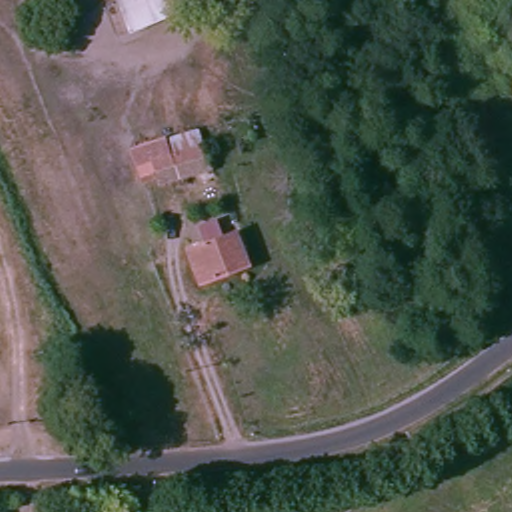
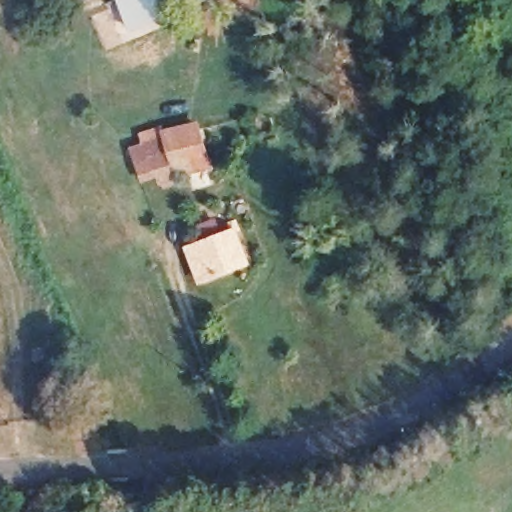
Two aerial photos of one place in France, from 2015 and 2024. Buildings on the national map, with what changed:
unchanged [(119,0),(193,0),(195,6),(131,30),(119,0)]
unchanged [(213,176),(152,202),(136,166),(168,152),(164,142),(193,129),(213,176)]
unchanged [(251,270),(197,291),(183,256),(238,235),(251,270)]

